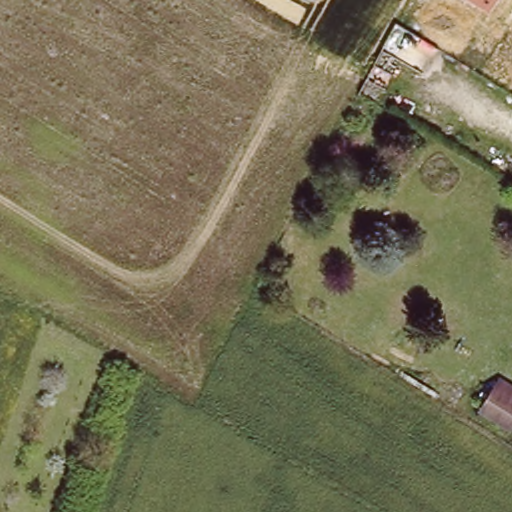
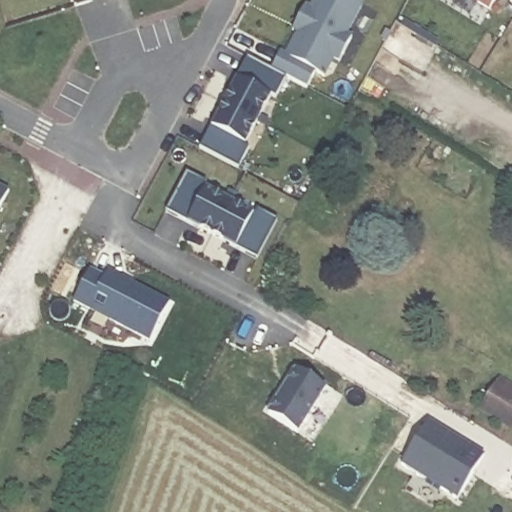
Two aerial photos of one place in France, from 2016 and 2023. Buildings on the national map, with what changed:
new [(286,78),(272,71),(281,52),(287,55),(297,34),(293,31),(306,6),(310,9),(314,0),(354,0),(365,5),(362,10),(375,17),(365,39),(354,34),(339,64),(335,61),(326,78),(315,73),(310,88),(286,78)]
unchanged [(477,0),(495,0),(490,8),(477,0)]
new [(200,149),(247,59),(272,71),(286,78),(239,169),(200,149)]
new [(185,175),(276,221),(257,259),(165,213),(185,175)]
new [(0,207),(0,186),(9,190),(0,207)]
new [(74,303),(89,271),(105,278),(108,271),(169,305),(150,343),(74,303)]
new [(269,415),(296,370),(327,389),(299,433),(269,415)]
unchanged [(499,380),(512,388),(512,425),(484,408),(499,380)]
new [(402,465),(429,422),(485,457),(459,501),(402,465)]

